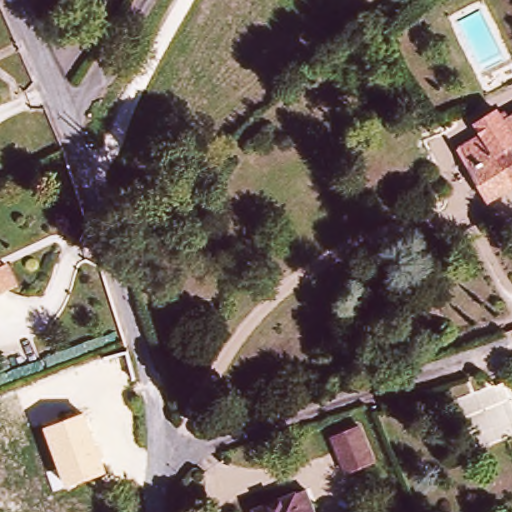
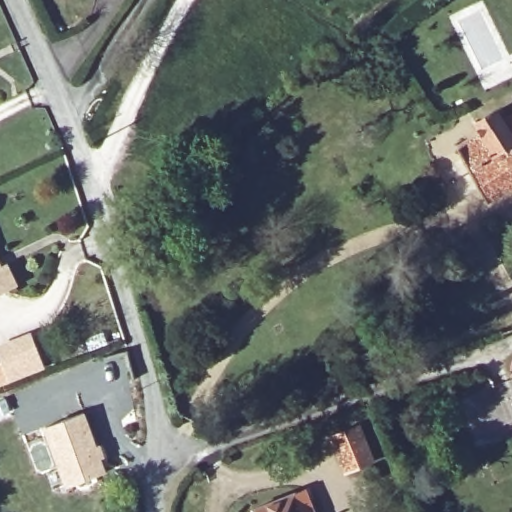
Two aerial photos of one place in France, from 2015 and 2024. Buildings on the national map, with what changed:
unchanged [(456,150),(478,138),(473,127),(495,115),(500,126),(512,119),(512,188),(485,203),(456,150)]
unchanged [(19,289),(10,294),(0,298),(0,270),(8,267),(19,289)]
new [(0,357),(0,343),(30,332),(45,368),(0,385),(0,367),(4,366),(0,357)]
demolished [(137,377),(114,383),(105,355),(130,348),(137,377)]
unchanged [(86,412),(106,473),(67,488),(45,428),(86,412)]
unchanged [(345,471),(331,436),(359,425),(372,460),(345,471)]
unchanged [(307,512),(258,512),(301,496),(307,512)]

